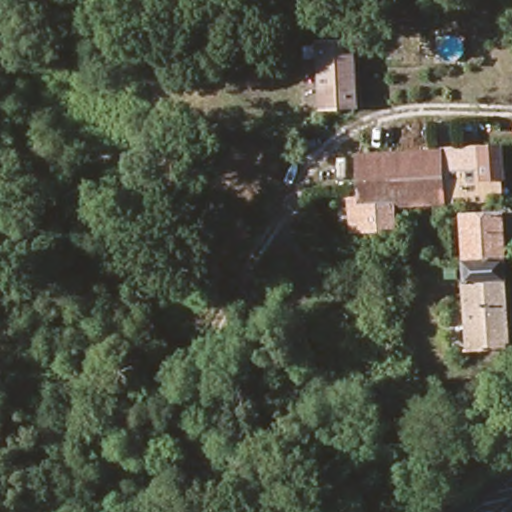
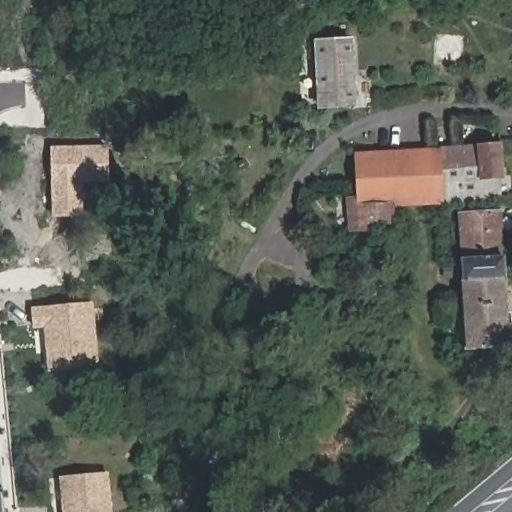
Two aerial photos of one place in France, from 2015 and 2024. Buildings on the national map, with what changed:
unchanged [(355,39),(356,106),(319,108),(317,41),(350,39),(355,39)]
unchanged [(348,233),(346,198),(356,197),(354,154),(498,145),(501,200),(393,207),(395,230),(348,233)]
new [(109,183),(83,184),(84,217),(52,218),(49,146),(109,146),(109,183)]
unchanged [(466,349),(458,213),(502,209),(511,347),(466,349)]
new [(92,302),(98,365),(49,369),(45,324),(34,326),(33,308),(92,302)]
new [(61,477),(108,473),(111,512),(65,512),(61,477)]

